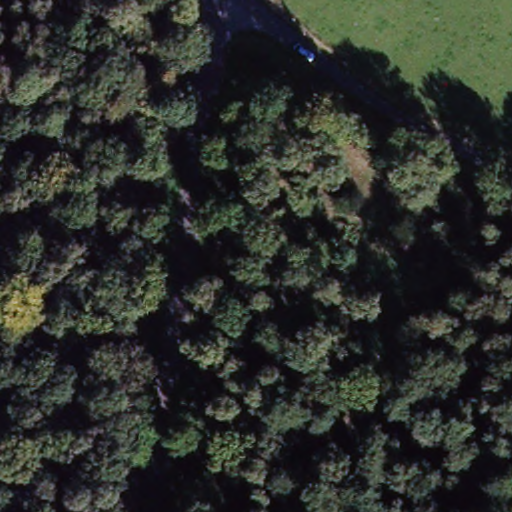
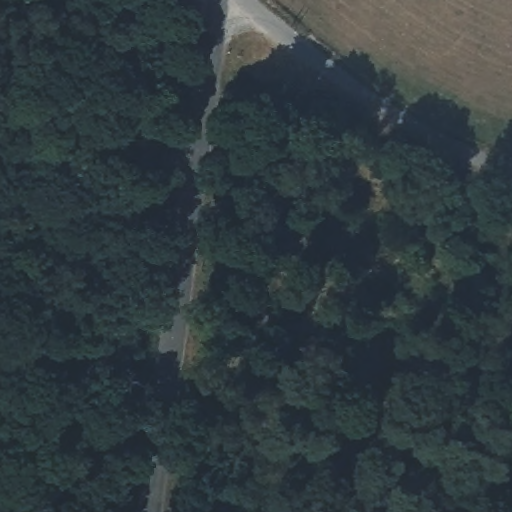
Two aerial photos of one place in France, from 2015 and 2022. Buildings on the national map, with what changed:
[]

